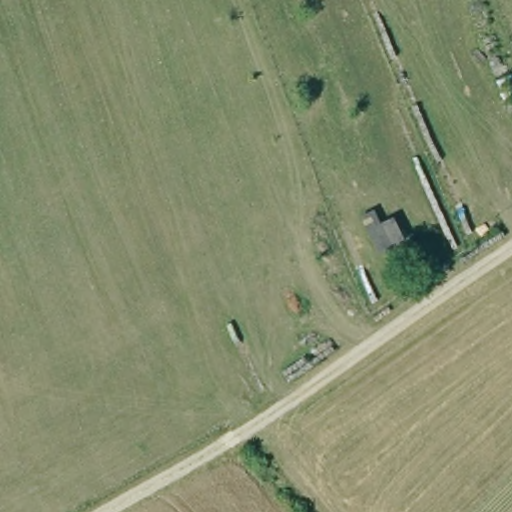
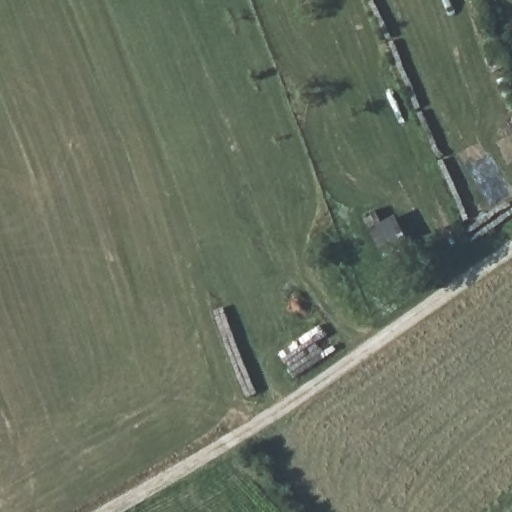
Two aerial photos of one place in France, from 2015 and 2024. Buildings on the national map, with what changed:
unchanged [(398,219),(411,244),(383,258),(371,231),(398,219)]

